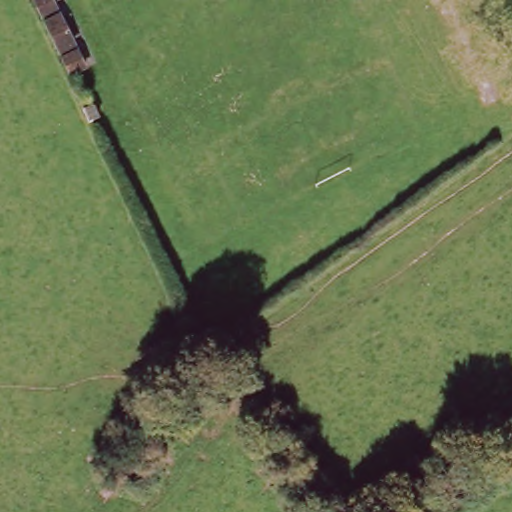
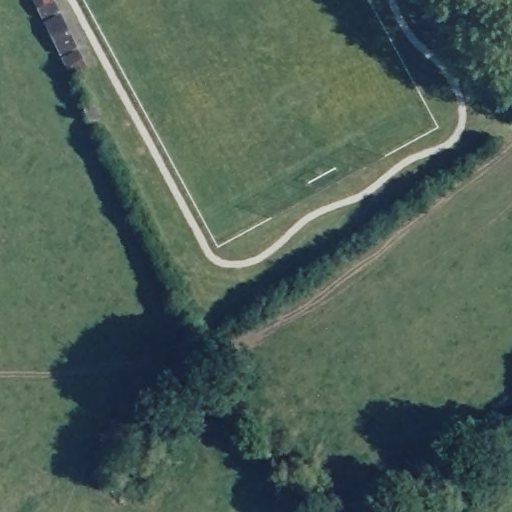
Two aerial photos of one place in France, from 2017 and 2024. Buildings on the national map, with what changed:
unchanged [(48,0),(82,67),(68,74),(32,0),(48,0)]
unchanged [(78,109),(90,104),(96,117),(85,122),(78,109)]

